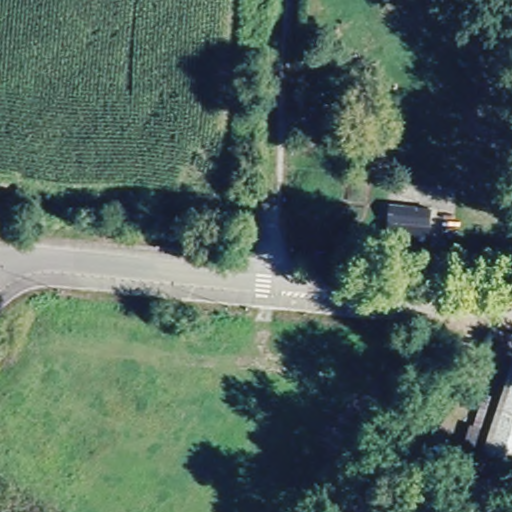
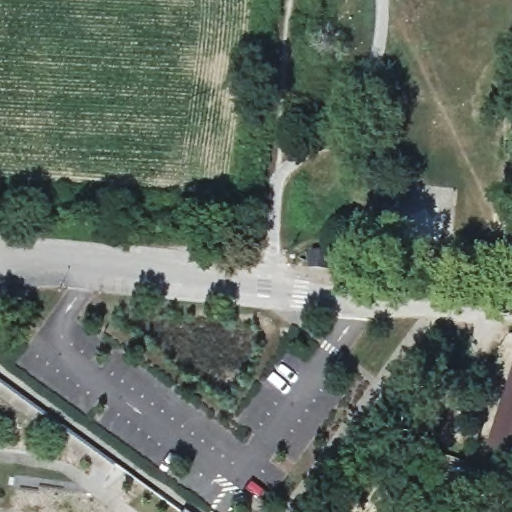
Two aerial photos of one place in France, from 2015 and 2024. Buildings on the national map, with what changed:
unchanged [(434,225),(432,243),(393,240),(396,206),(435,209),(434,225)]
unchanged [(330,274),(330,278),(308,277),(309,268),(310,261),(331,262),(330,274)]
unchanged [(512,368),(512,456),(488,450),(512,368)]
unchanged [(458,441),(464,421),(477,424),(471,445),(458,441)]

